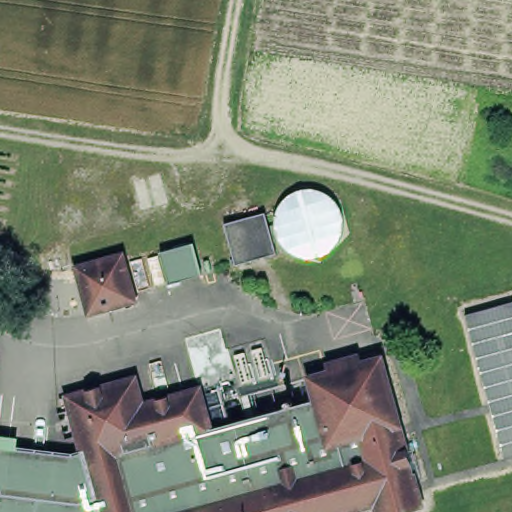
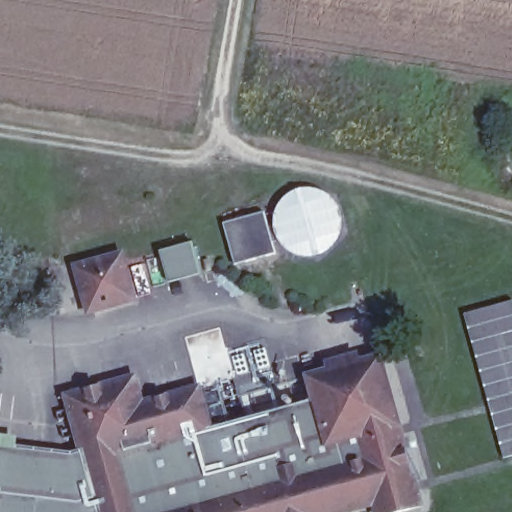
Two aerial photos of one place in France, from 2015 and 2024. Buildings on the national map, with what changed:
unchanged [(267,207),(277,250),(237,261),(225,218),(267,207)]
unchanged [(198,234),(206,265),(174,274),(166,242),(198,234)]
unchanged [(133,245),(145,292),(99,304),(87,257),(133,245)]
unchanged [(512,452),(505,454),(465,304),(512,289),(512,452)]
unchanged [(267,332),(277,372),(239,383),(229,344),(267,332)]
unchanged [(77,441),(86,437),(75,398),(67,400),(64,385),(71,382),(140,363),(147,390),(206,373),(217,414),(320,385),(315,362),(386,344),(427,494),(385,506),(380,491),(320,508),(321,512),(0,512),(0,430),(77,441)]

